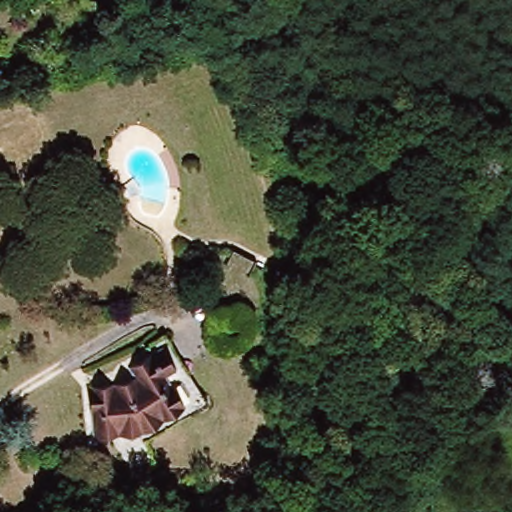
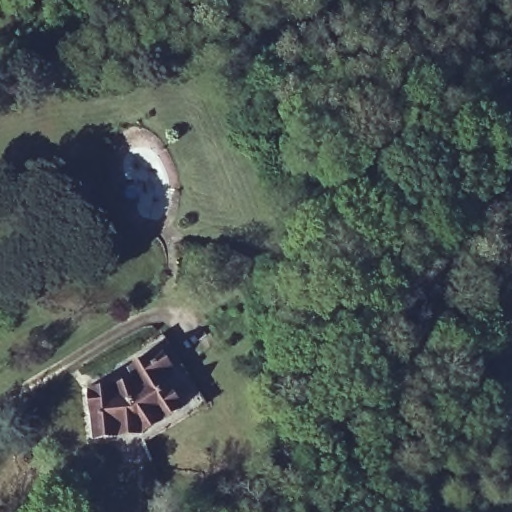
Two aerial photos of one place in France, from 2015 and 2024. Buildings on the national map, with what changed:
unchanged [(161,345),(196,419),(126,453),(121,445),(103,438),(80,443),(66,393),(109,381),(105,371),(161,345)]

